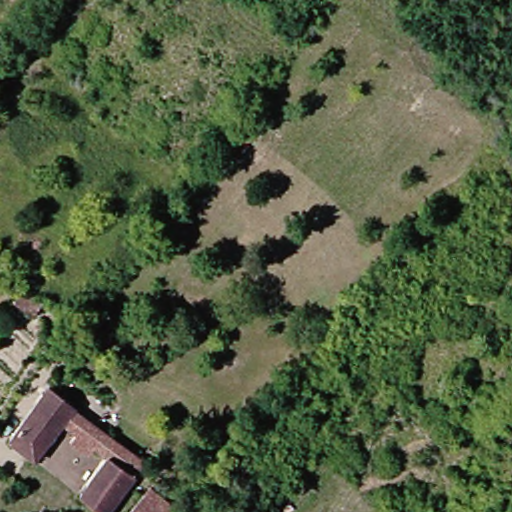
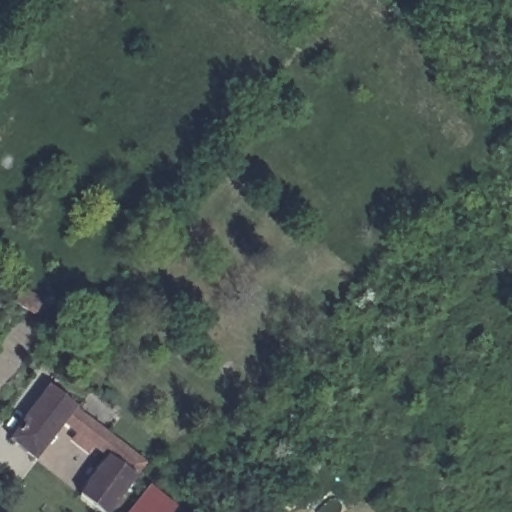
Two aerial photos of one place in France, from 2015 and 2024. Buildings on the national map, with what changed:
unchanged [(31,307),(24,318),(8,307),(15,297),(31,307)]
unchanged [(90,494),(114,458),(105,452),(99,461),(80,448),(75,445),(82,436),(69,427),(47,456),(45,459),(16,436),(54,387),(82,409),(101,422),(127,441),(156,459),(118,512),(90,494)]
unchanged [(182,504),(177,512),(138,512),(159,485),(182,504)]

